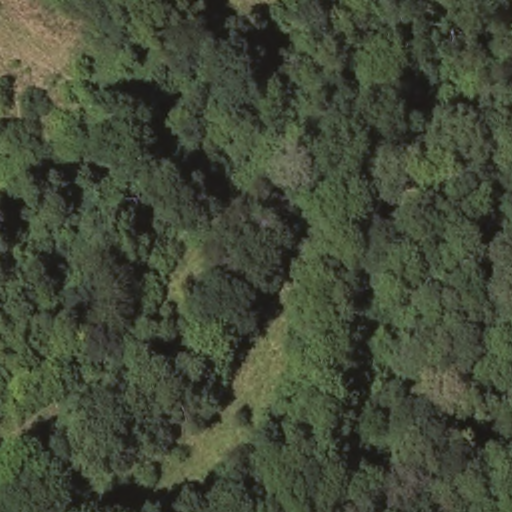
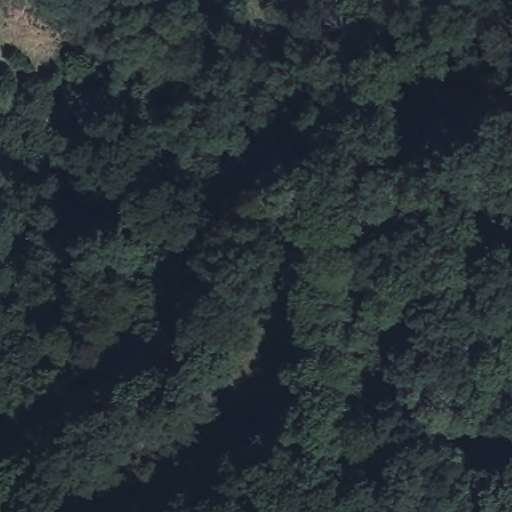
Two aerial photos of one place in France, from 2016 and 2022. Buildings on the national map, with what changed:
[]

